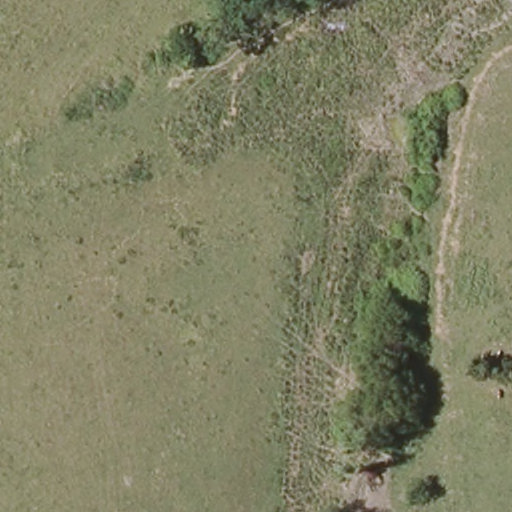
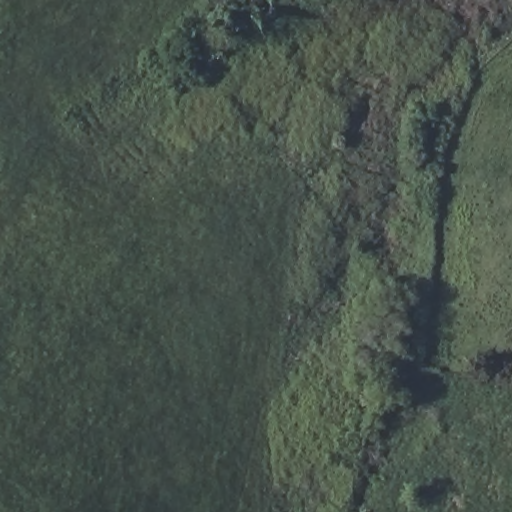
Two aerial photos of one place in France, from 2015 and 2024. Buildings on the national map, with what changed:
[]

